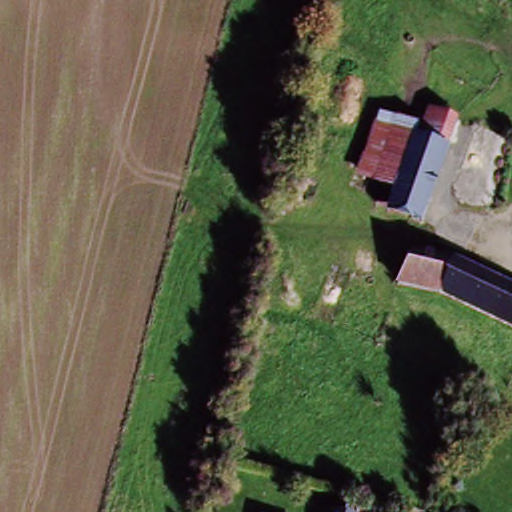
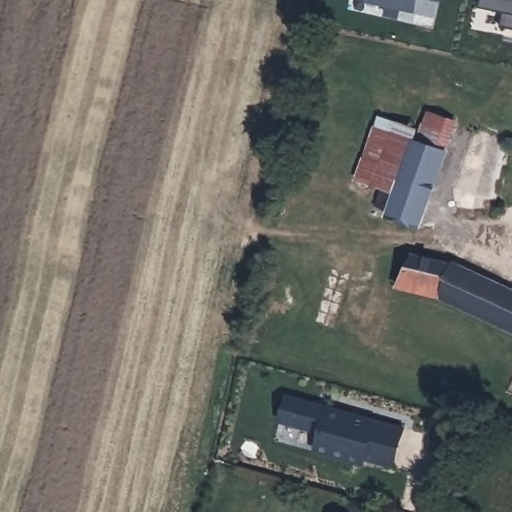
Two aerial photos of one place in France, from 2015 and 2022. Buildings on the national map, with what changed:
unchanged [(395,194),(414,142),(417,128),(425,112),(454,123),(420,225),(377,208),(384,189),(395,194)]
unchanged [(373,185),(360,181),(382,116),(417,128),(414,142),(395,194),(384,189),(373,185)]
unchanged [(439,285),(397,281),(412,247),(452,253),(439,285)]
unchanged [(454,251),(512,280),(512,320),(439,285),(452,253),(454,251)]
new [(405,427),(395,469),(366,461),(365,464),(314,450),(319,428),(277,422),(284,393),(405,427)]

